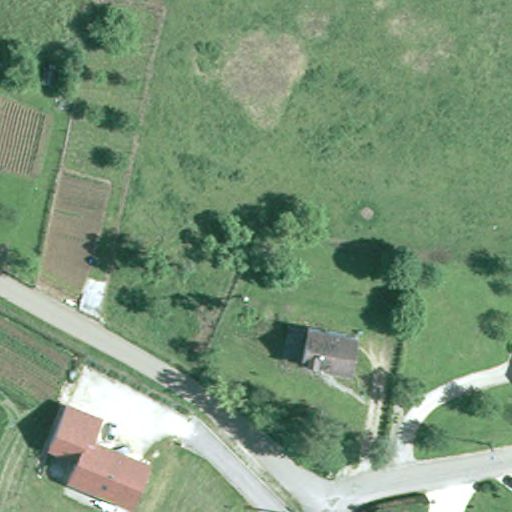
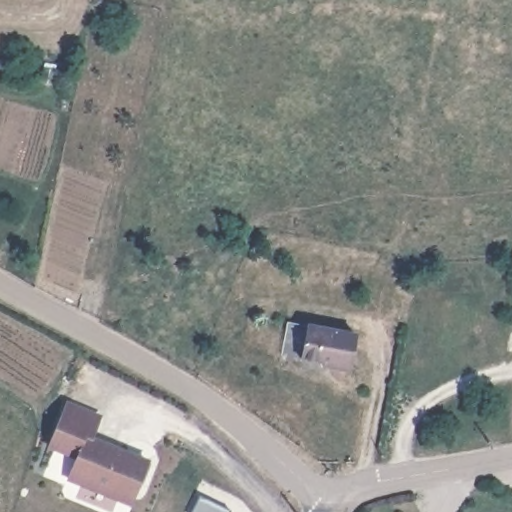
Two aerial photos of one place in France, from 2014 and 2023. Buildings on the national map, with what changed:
unchanged [(364,374),(349,371),(350,367),(318,360),(299,356),(306,323),(326,327),(374,338),(364,374)]
unchanged [(100,414),(91,439),(148,461),(131,510),(64,484),(73,460),(48,450),(66,400),(100,414)]
new [(231,511),(230,512),(192,512),(199,496),(231,511)]

